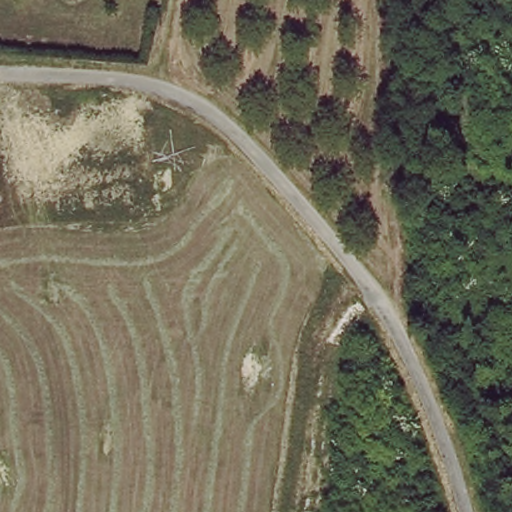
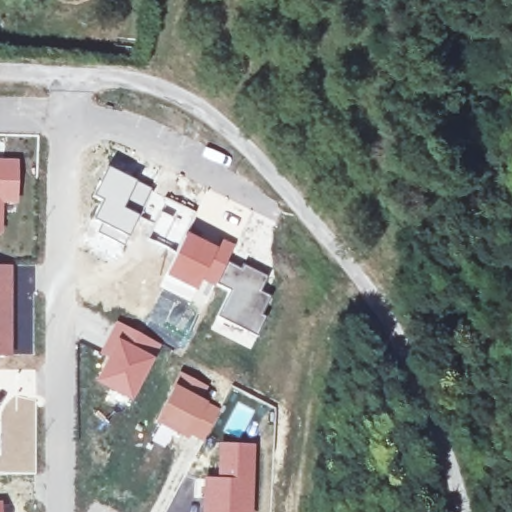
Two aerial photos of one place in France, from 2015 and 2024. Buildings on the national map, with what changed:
new [(19,205),(3,206),(2,235),(0,236),(0,160),(19,160),(19,205)]
new [(101,199),(93,195),(108,166),(153,189),(125,246),(95,232),(100,223),(92,219),(101,199)]
new [(165,198),(196,213),(186,232),(179,245),(150,231),(165,198)]
new [(215,288),(201,283),(191,303),(158,288),(163,276),(179,245),(186,232),(217,247),(222,238),(235,245),(228,261),(241,267),(243,264),(268,276),(261,290),(271,296),(263,314),(266,316),(256,337),(215,316),(228,291),(216,286),(215,288)]
new [(0,265),(9,265),(9,355),(0,355),(0,265)]
new [(107,357),(100,353),(116,320),(161,344),(131,401),(94,382),(107,357)]
new [(157,426),(153,424),(179,371),(209,386),(202,398),(222,409),(203,443),(190,436),(187,442),(173,434),(165,448),(149,440),(157,426)]
new [(215,476),(217,442),(256,443),(254,512),(200,512),(201,476),(215,476)]
new [(3,512),(0,512),(0,500),(3,500),(3,512)]

